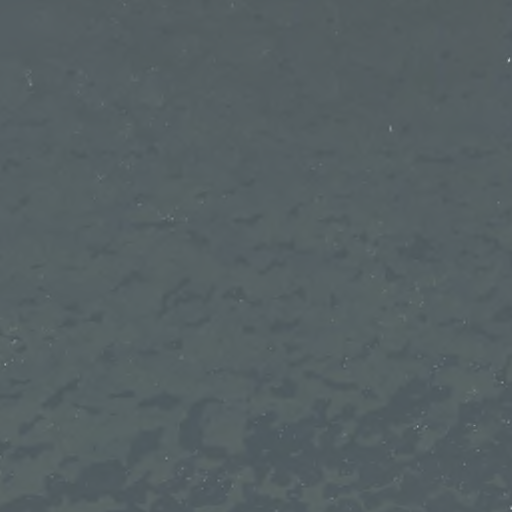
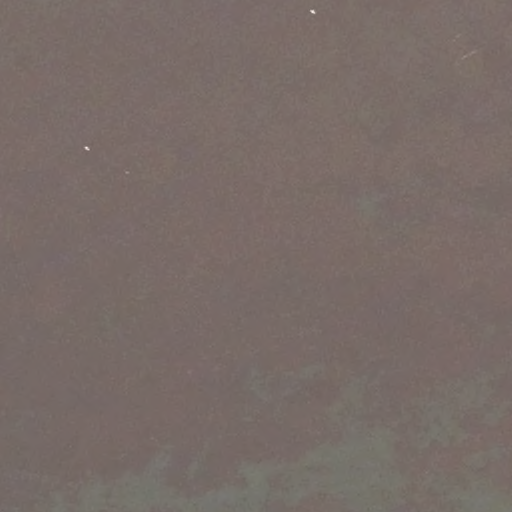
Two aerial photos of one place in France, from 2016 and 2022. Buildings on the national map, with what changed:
[]

